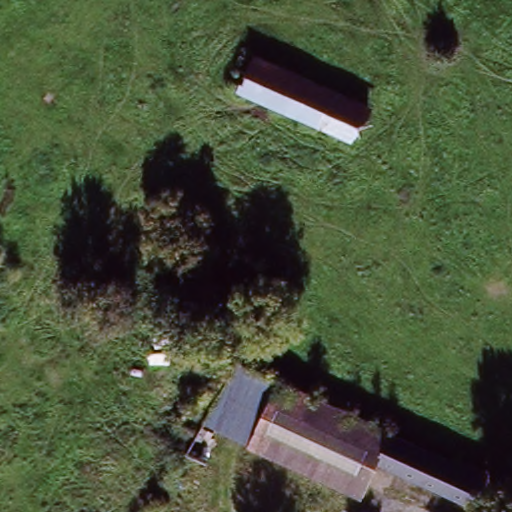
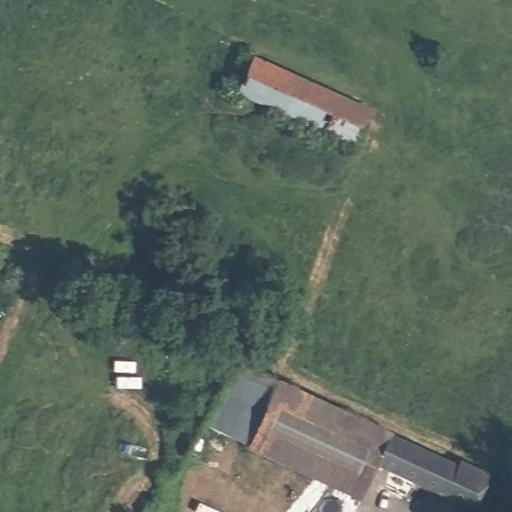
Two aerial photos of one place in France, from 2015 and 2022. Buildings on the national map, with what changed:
unchanged [(375,116),(358,150),(245,95),(247,91),(233,84),(244,61),(259,68),(262,60),(375,116)]
unchanged [(208,427),(241,365),(283,381),(489,477),(474,510),(380,467),(364,503),(250,450),(208,427)]

